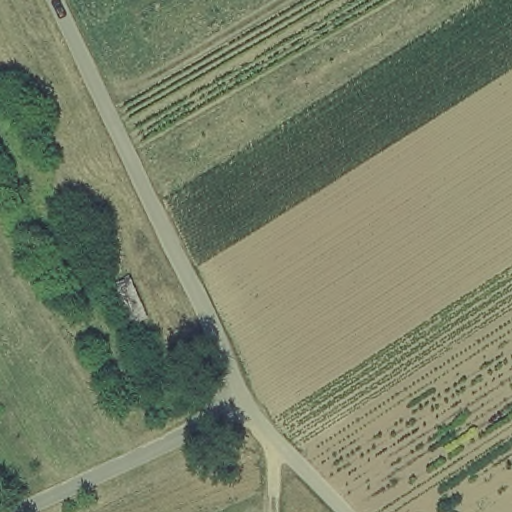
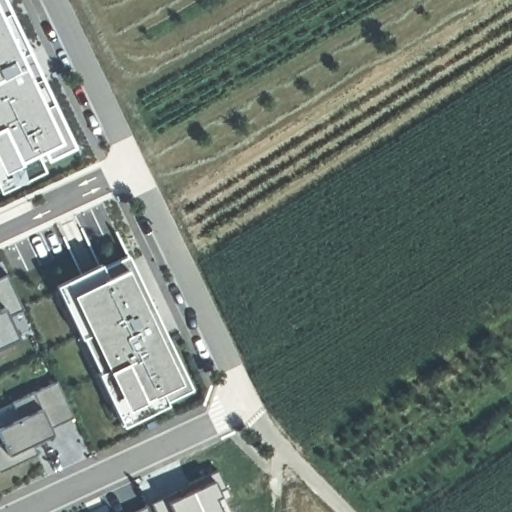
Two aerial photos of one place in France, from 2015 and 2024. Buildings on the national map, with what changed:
new [(41,150),(36,153),(43,171),(0,190),(0,0),(5,0),(9,10),(7,10),(27,49),(29,49),(41,76),(39,76),(51,101),(53,100),(75,147),(48,161),(41,150)]
new [(101,265),(127,252),(191,387),(165,399),(167,403),(122,424),(97,373),(99,371),(83,335),(80,336),(55,283),(100,262),(101,265)]
new [(23,309),(8,316),(17,337),(0,345),(0,277),(6,274),(23,309)]
new [(73,417),(49,428),(52,433),(31,442),(37,454),(0,471),(0,444),(1,443),(0,440),(0,425),(18,417),(10,401),(56,380),(73,417)]
new [(168,498),(213,479),(219,493),(214,496),(221,512),(155,512),(151,503),(166,496),(168,498)]
new [(147,512),(135,512),(144,506),(147,512)]

